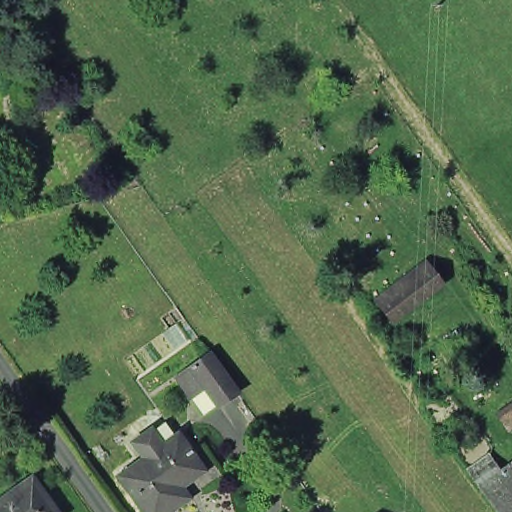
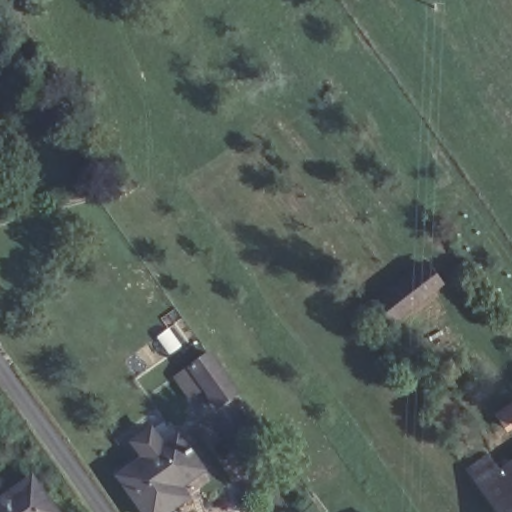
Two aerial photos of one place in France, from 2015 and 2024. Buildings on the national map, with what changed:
unchanged [(386,322),(371,302),(417,267),(432,287),(386,322)]
unchanged [(175,375),(189,365),(207,352),(236,391),(217,404),(204,386),(190,396),(175,375)]
unchanged [(512,402),(512,431),(509,433),(496,413),(512,402)]
unchanged [(129,445),(146,434),(157,450),(162,447),(172,439),(196,474),(186,482),(173,491),(180,500),(162,512),(137,512),(114,479),(140,462),(129,445)]
unchanged [(461,464),(490,446),(501,466),(512,457),(512,512),(494,512),(461,464)]
unchanged [(0,500),(26,482),(30,479),(52,512),(0,512),(0,500)]

